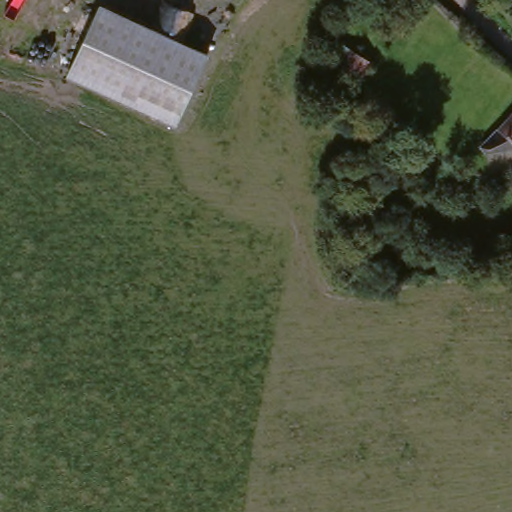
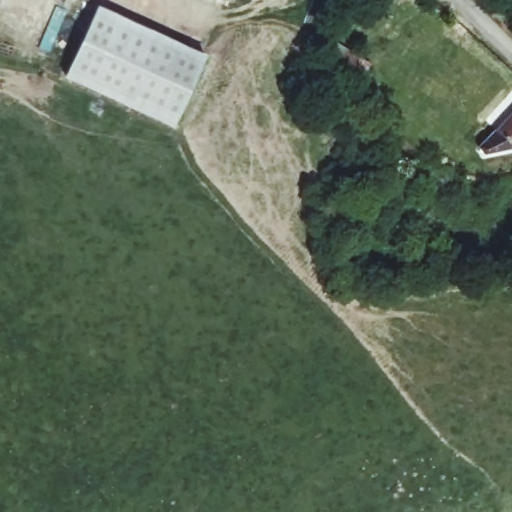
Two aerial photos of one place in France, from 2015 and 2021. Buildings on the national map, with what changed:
unchanged [(101,4),(209,55),(177,122),(68,70),(101,4)]
unchanged [(348,46),(364,57),(348,79),(332,68),(348,46)]
unchanged [(512,155),(511,155),(499,159),(484,165),(481,161),(479,159),(477,156),(512,112),(512,155)]

